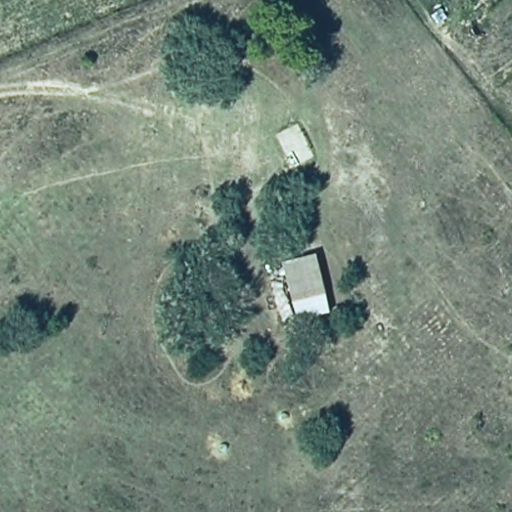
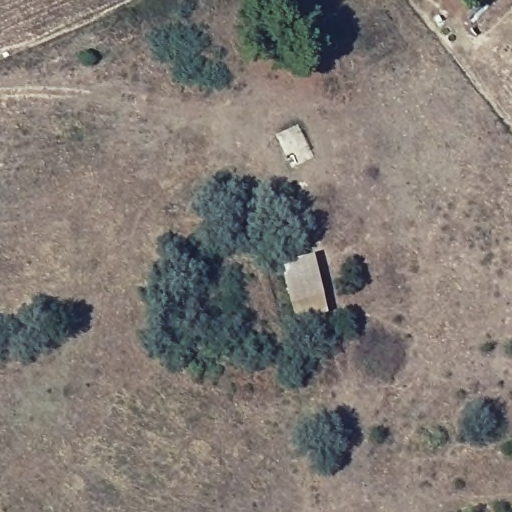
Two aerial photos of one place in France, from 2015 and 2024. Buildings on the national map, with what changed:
unchanged [(311,259),(321,300),(287,308),(277,265),(311,259)]

